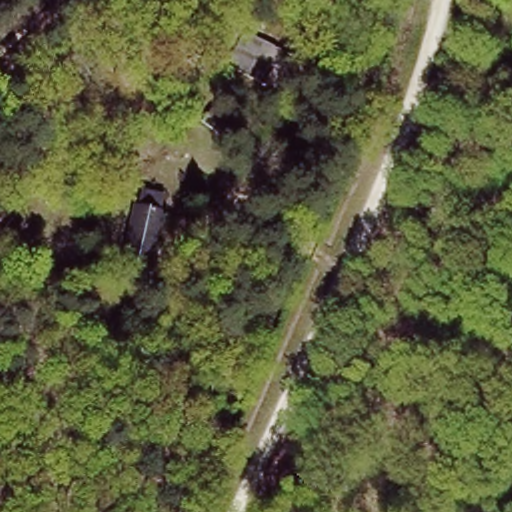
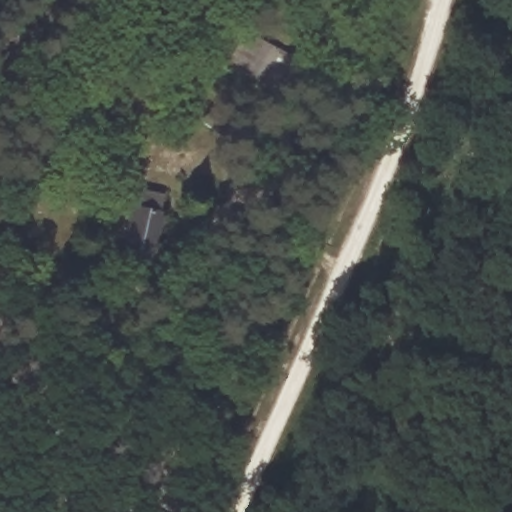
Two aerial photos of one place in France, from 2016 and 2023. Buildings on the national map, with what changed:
unchanged [(268,90),(255,79),(242,68),(229,57),(255,26),(268,37),(281,48),(295,59),(268,90)]
unchanged [(220,102),(252,123),(243,135),(211,114),(220,102)]
unchanged [(122,261),(115,260),(126,207),(130,207),(135,187),(165,194),(160,213),(162,214),(150,267),(144,266),(142,280),(120,277),(122,261)]

